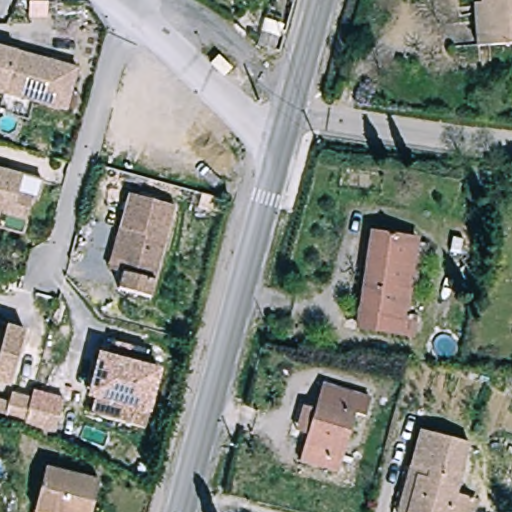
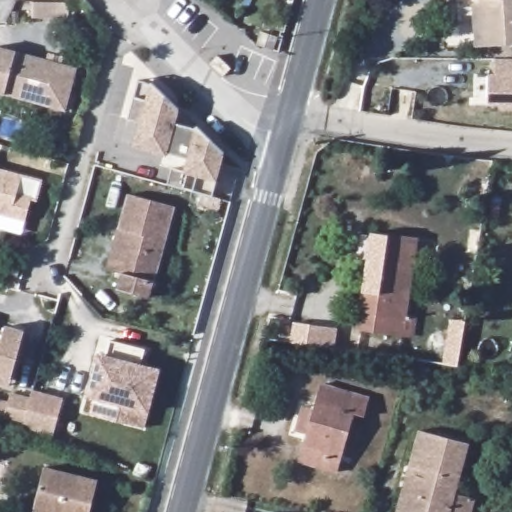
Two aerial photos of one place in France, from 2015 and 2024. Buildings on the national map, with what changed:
unchanged [(472,12),(480,11),(479,0),(512,0),(512,46),(489,49),(476,50),(472,12)]
unchanged [(276,36),(270,50),(256,45),(260,31),(276,36)]
unchanged [(65,113),(33,105),(0,96),(0,50),(76,70),(65,113)]
new [(488,110),(490,74),(495,74),(495,59),(512,59),(512,110),(488,110)]
new [(213,196),(192,191),(166,184),(171,167),(183,170),(186,157),(168,152),(168,156),(131,146),(138,121),(129,119),(139,80),(151,83),(180,109),(176,124),(196,129),(196,125),(225,152),(218,181),(213,196)]
unchanged [(36,204),(30,225),(0,217),(0,174),(26,181),(46,186),(41,205),(36,204)]
unchanged [(121,221),(131,186),(178,200),(152,290),(120,282),(125,266),(110,262),(121,221)]
unchanged [(368,233),(412,240),(400,315),(409,316),(406,336),(353,328),(368,233)]
unchanged [(28,323),(11,378),(0,375),(0,324),(8,326),(10,319),(28,323)]
unchanged [(92,398),(101,401),(113,361),(102,358),(108,340),(143,350),(138,368),(155,373),(139,431),(87,416),(92,398)]
unchanged [(57,434),(28,421),(29,418),(8,413),(10,410),(0,407),(0,394),(13,397),(15,387),(36,393),(38,387),(66,395),(57,434)]
unchanged [(308,438),(298,435),(306,409),(316,411),(319,403),(324,388),(371,401),(367,417),(356,415),(338,475),(300,465),(308,438)]
unchanged [(422,427),(471,441),(456,492),(476,498),(471,512),(397,512),(412,464),(422,427)]
unchanged [(91,512),(45,512),(33,509),(45,467),(99,480),(91,512)]

